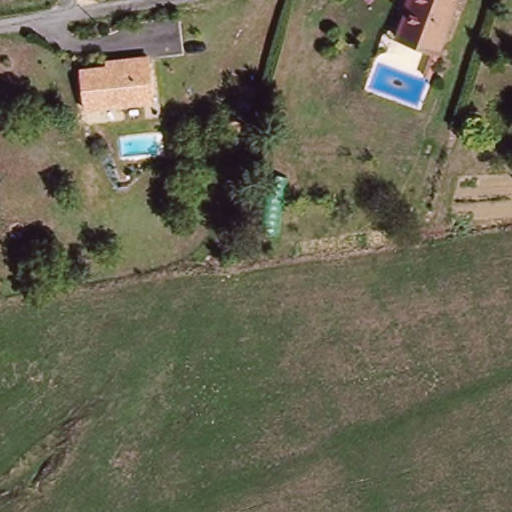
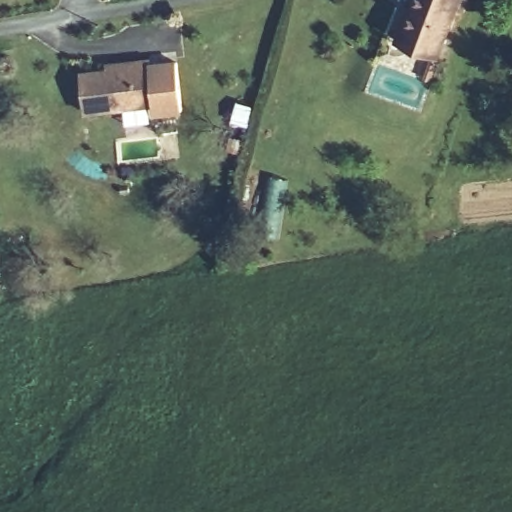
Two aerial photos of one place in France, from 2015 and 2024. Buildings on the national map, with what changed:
unchanged [(396,40),(411,2),(405,0),(457,0),(437,56),(427,80),(423,78),(432,54),(396,40)]
new [(183,111),(156,115),(155,107),(153,74),(153,65),(177,60),(183,111)]
unchanged [(85,114),(82,82),(82,72),(107,72),(107,67),(131,66),(131,65),(153,65),(153,74),(155,107),(85,114)]

